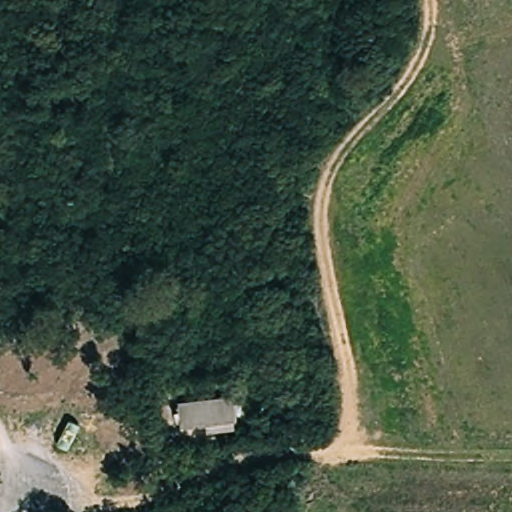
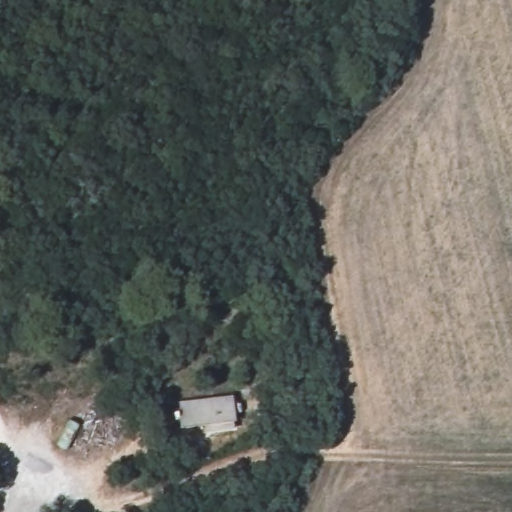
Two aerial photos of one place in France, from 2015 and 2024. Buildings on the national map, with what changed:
unchanged [(236,428),(204,432),(204,424),(178,426),(177,402),(235,395),(236,428)]

